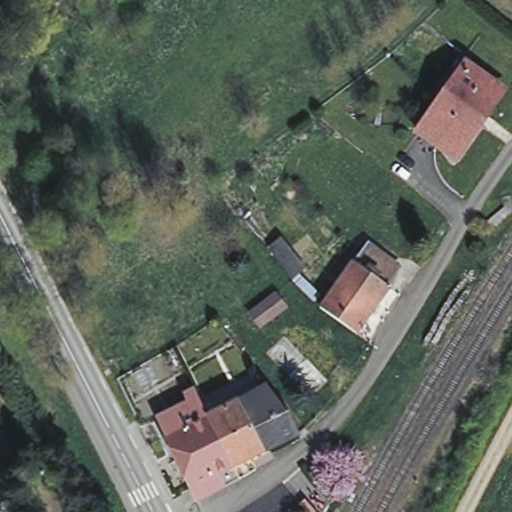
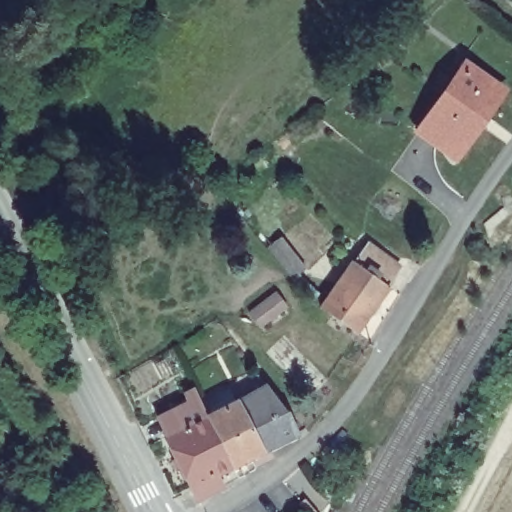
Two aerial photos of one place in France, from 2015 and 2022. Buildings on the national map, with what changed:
unchanged [(443,98),(452,84),(466,65),(504,91),(486,115),(477,128),(462,149),(456,158),(419,132),(425,122),(443,98)]
unchanged [(282,238),(306,270),(294,279),(270,248),(282,238)]
unchanged [(358,263),(371,246),(402,268),(389,285),(391,287),(365,323),(357,333),(322,307),(327,301),(357,262),(358,263)]
unchanged [(288,306),(261,326),(251,312),(278,293),(288,306)]
unchanged [(285,333),(327,380),(310,397),(266,350),(285,333)]
unchanged [(267,382),(288,411),(298,430),(298,435),(235,466),(208,416),(267,382)]
unchanged [(208,417),(208,416),(235,466),(236,466),(235,467),(220,474),(226,486),(198,500),(192,487),(166,438),(157,419),(172,412),(198,398),(208,417)]

